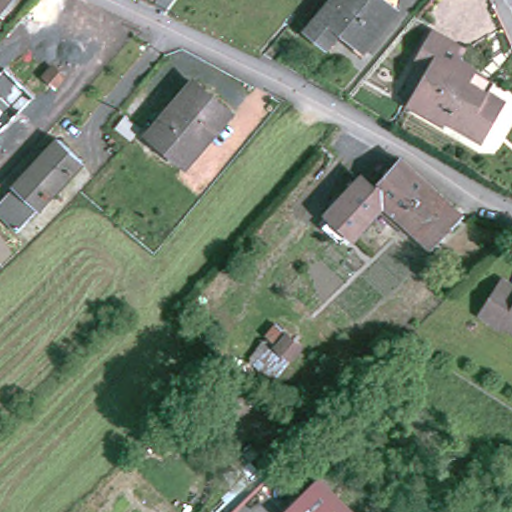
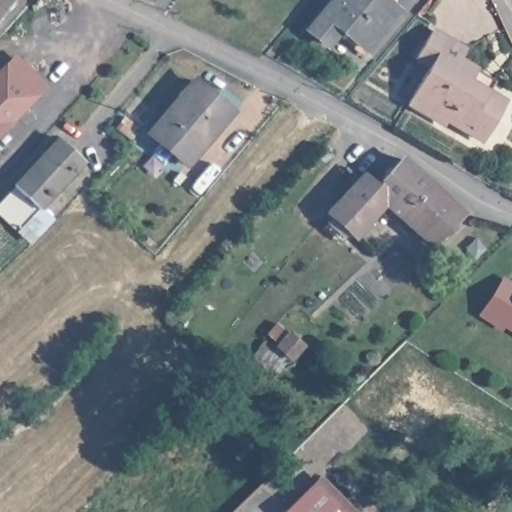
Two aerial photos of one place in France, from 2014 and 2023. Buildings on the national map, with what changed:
unchanged [(10,0),(0,12),(0,0),(10,0)]
unchanged [(314,25),(336,0),(394,0),(401,5),(369,43),(346,24),(332,40),(314,25)]
unchanged [(484,140),(448,120),(446,124),(409,102),(429,67),(416,59),(432,31),(466,50),(459,60),(477,70),(495,81),(489,92),(506,102),(484,140)]
new [(50,85),(0,138),(0,70),(15,54),(50,85)]
demolished [(65,76),(55,87),(43,77),(54,65),(65,76)]
unchanged [(186,165),(151,135),(195,82),(230,112),(186,165)]
unchanged [(84,161),(83,162),(18,230),(0,212),(0,202),(59,139),(84,161)]
unchanged [(439,246),(419,230),(414,235),(396,220),(398,219),(386,208),(359,239),(333,214),(366,179),(379,190),(404,163),(408,160),(470,215),(439,246)]
unchanged [(502,329),(481,315),(504,280),(512,285),(512,329),(505,324),(502,329)]
unchanged [(278,321),(306,345),(284,370),(270,357),(249,376),(235,361),(278,321)]
unchanged [(320,476),(356,512),(284,512),(320,476)]

